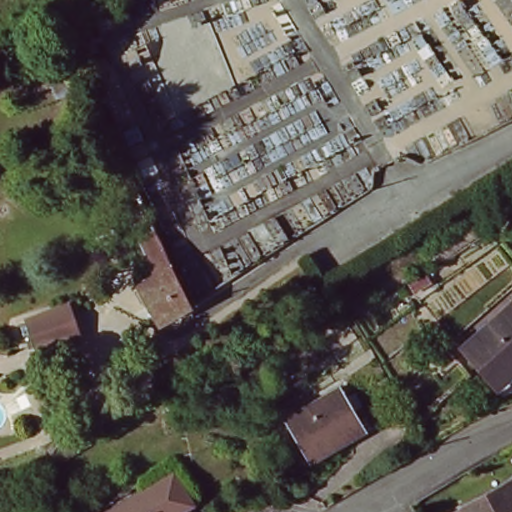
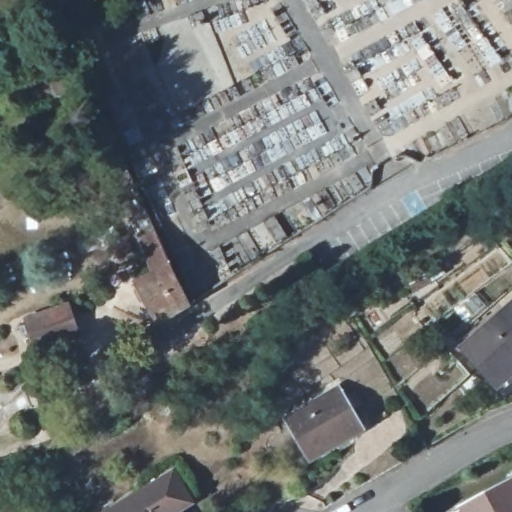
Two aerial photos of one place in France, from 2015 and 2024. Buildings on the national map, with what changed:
unchanged [(51,83),(73,75),(78,89),(55,97),(51,83)]
unchanged [(189,307),(161,321),(142,276),(154,271),(142,235),(158,229),(189,307)]
unchanged [(512,302),(512,368),(497,383),(463,348),(511,301),(512,302)]
unchanged [(69,307),(78,338),(39,353),(28,321),(69,307)]
unchanged [(339,385),(363,425),(334,442),(330,435),(301,451),(283,418),(339,385)]
unchanged [(512,512),(459,512),(512,486),(512,512)]
unchanged [(168,512),(115,512),(157,491),(168,512)]

